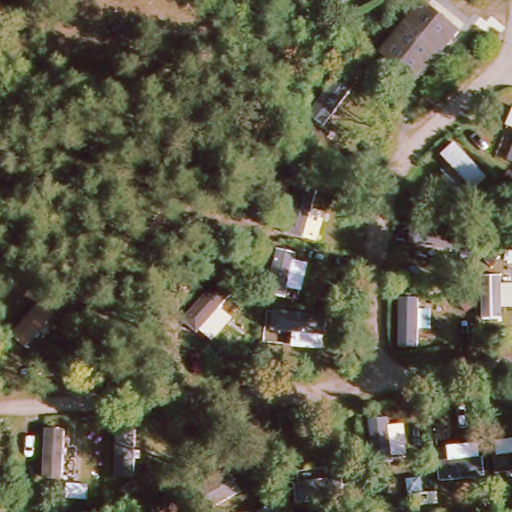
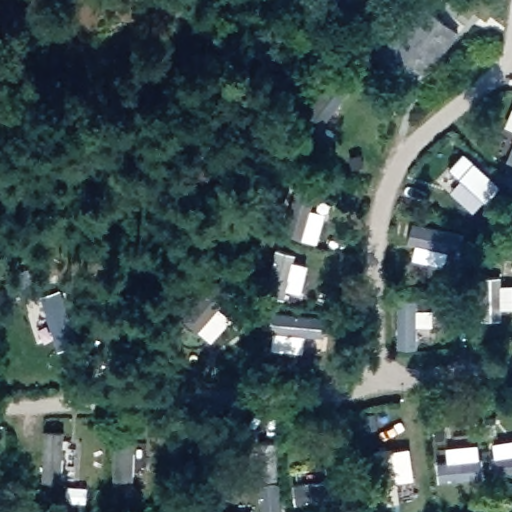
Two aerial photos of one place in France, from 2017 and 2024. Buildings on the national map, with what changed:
unchanged [(379,52),(421,5),(453,36),(413,85),(379,52)]

